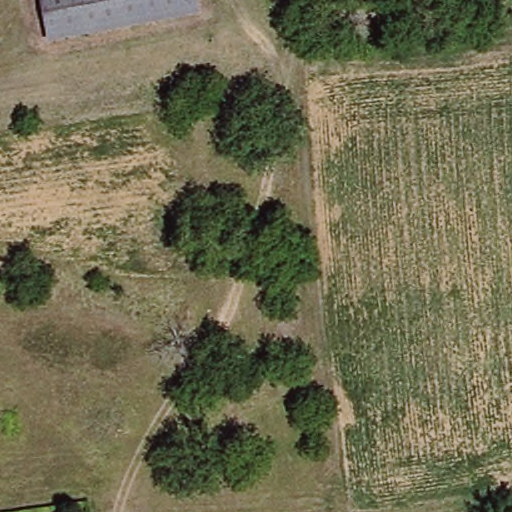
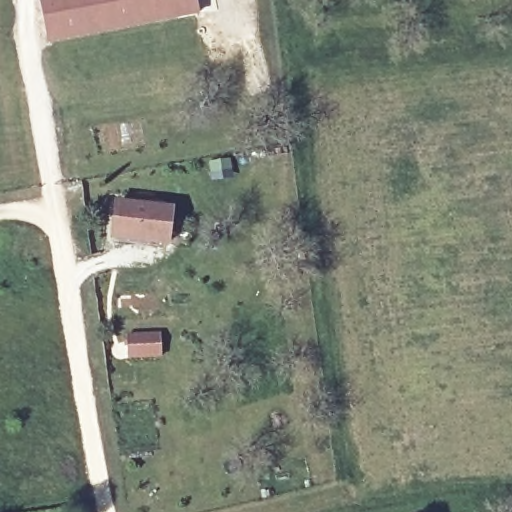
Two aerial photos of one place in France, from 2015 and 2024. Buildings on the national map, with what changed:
unchanged [(182,0),(184,13),(45,35),(40,0),(182,0)]
new [(175,208),(170,249),(109,241),(113,201),(175,208)]

